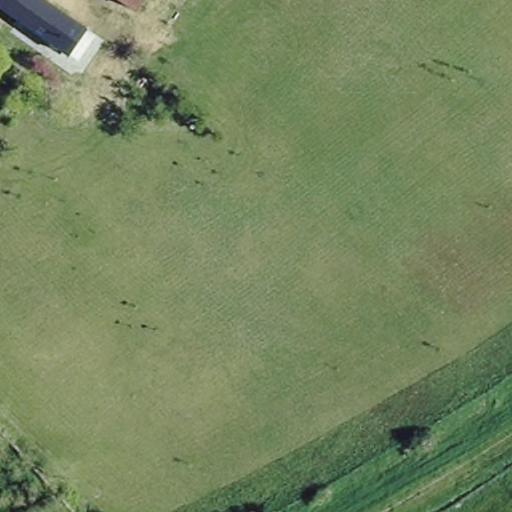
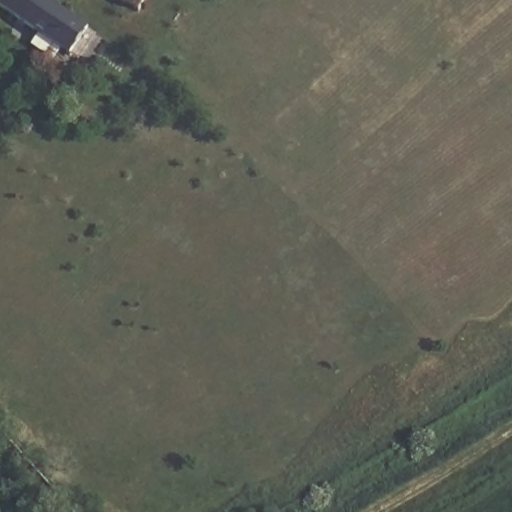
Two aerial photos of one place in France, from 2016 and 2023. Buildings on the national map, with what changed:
unchanged [(6,0),(46,0),(97,37),(86,51),(80,47),(72,58),(1,7),(6,0)]
unchanged [(142,6),(140,9),(126,0),(146,0),(142,6)]

